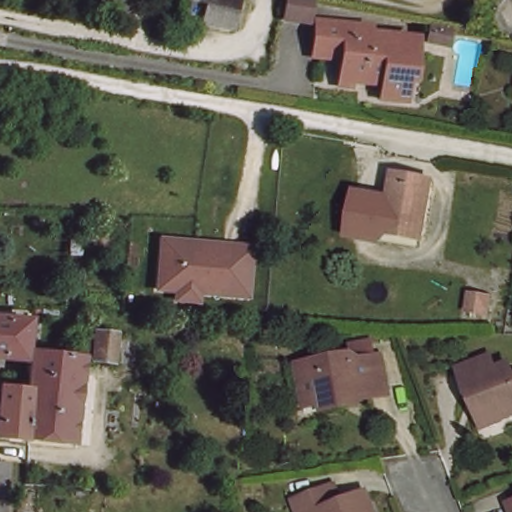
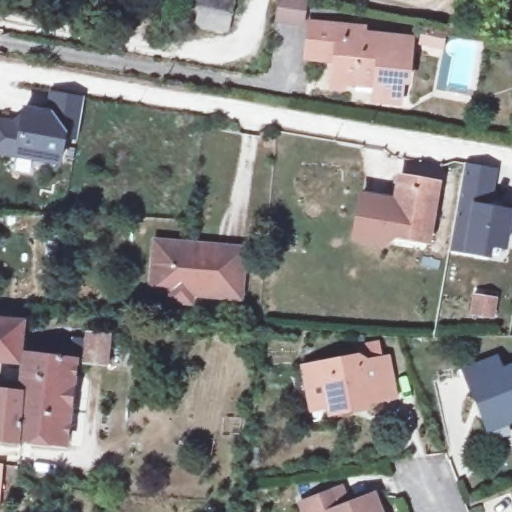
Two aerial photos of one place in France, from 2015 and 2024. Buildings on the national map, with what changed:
unchanged [(188,3),(189,0),(238,0),(233,14),(188,3)]
unchanged [(274,15),(276,0),(302,0),(299,20),(274,15)]
unchanged [(361,35),(410,37),(404,80),(395,80),(394,100),(373,99),(373,83),(329,79),(331,50),(304,47),(306,22),(361,27),(361,35)]
new [(78,139),(65,137),(61,164),(0,155),(0,123),(15,126),(17,128),(23,124),(25,111),(50,114),(53,92),(84,97),(78,139)]
new [(465,162),(499,167),(493,204),(512,208),(512,221),(506,251),(490,248),(489,257),(449,251),(465,162)]
unchanged [(428,241),(389,233),(400,177),(439,186),(428,241)]
unchanged [(389,233),(428,241),(427,256),(351,244),(358,192),(396,200),(389,233)]
unchanged [(163,297),(163,288),(143,287),(148,237),(208,242),(238,244),(235,276),(234,293),(184,290),(183,299),(163,297)]
unchanged [(493,317),(474,317),(475,298),(493,300),(493,317)]
unchanged [(306,327),(261,322),(263,308),(308,313),(306,327)]
unchanged [(13,367),(0,366),(0,325),(17,327),(13,367)]
unchanged [(103,368),(81,367),(83,340),(105,341),(103,368)]
unchanged [(334,413),(329,404),(311,407),(308,391),(303,365),(356,357),(354,347),(373,342),(376,359),(384,357),(392,393),(365,397),(367,407),(351,410),(334,413)]
unchanged [(480,420),(473,400),(465,376),(456,378),(452,367),(491,353),(498,369),(509,364),(512,371),(512,416),(509,417),(483,427),(480,420)]
unchanged [(15,387),(18,357),(73,365),(69,407),(68,422),(66,449),(18,446),(11,446),(0,445),(0,397),(14,398),(15,387)]
unchanged [(379,512),(303,512),(296,494),(330,482),(339,478),(345,496),(371,487),(379,512)]
unchanged [(509,503),(512,502),(512,510),(509,503)]

